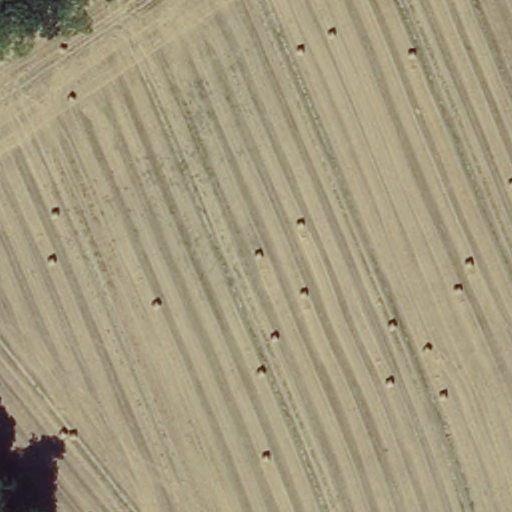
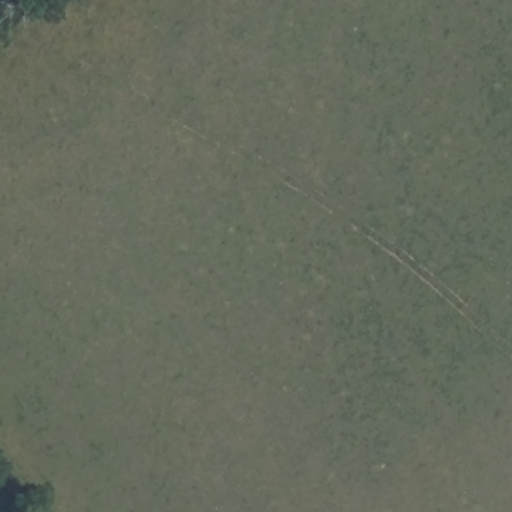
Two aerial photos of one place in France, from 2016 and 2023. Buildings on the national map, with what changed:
[]

